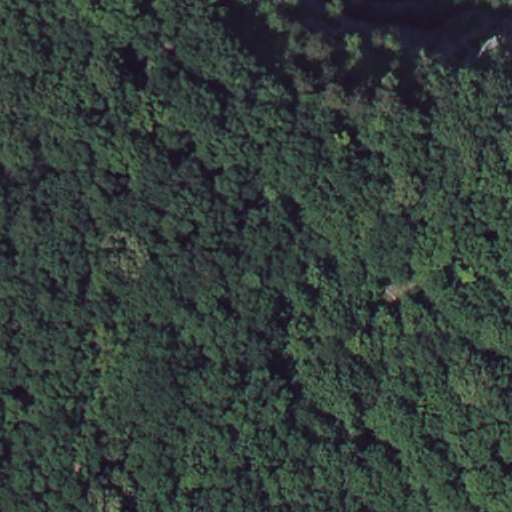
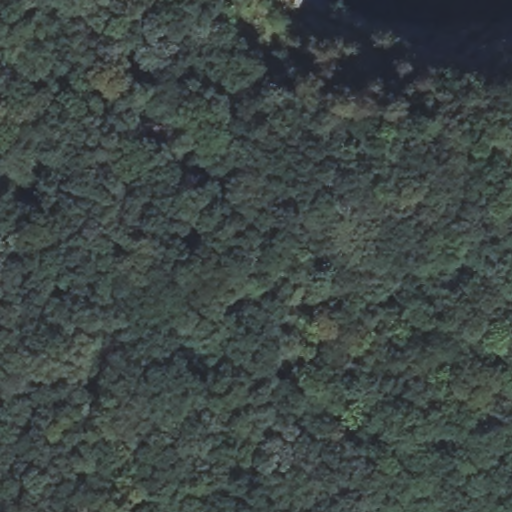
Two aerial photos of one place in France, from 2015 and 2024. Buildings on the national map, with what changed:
[]

